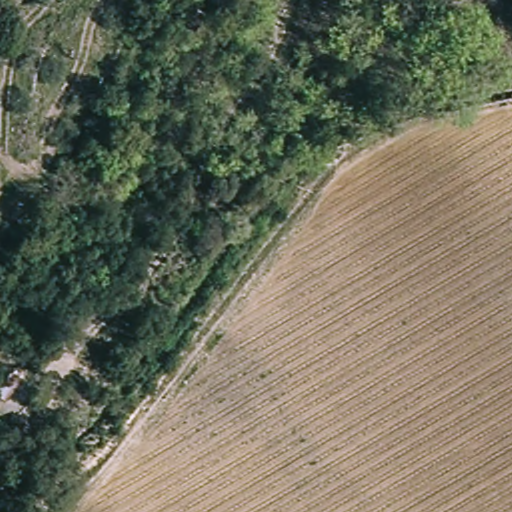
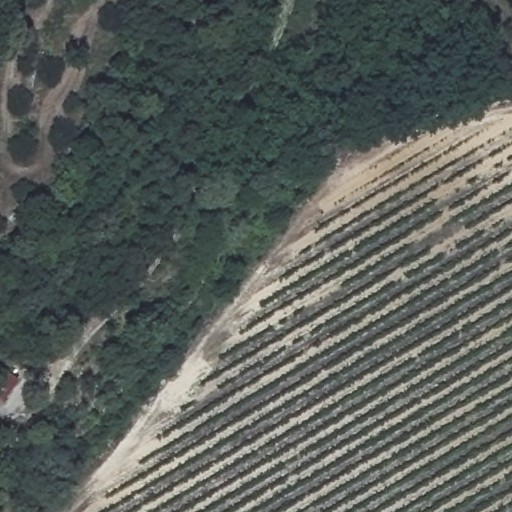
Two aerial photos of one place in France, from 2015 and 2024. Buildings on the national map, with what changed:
unchanged [(0,390),(15,367),(37,382),(18,409),(0,399),(0,390)]

